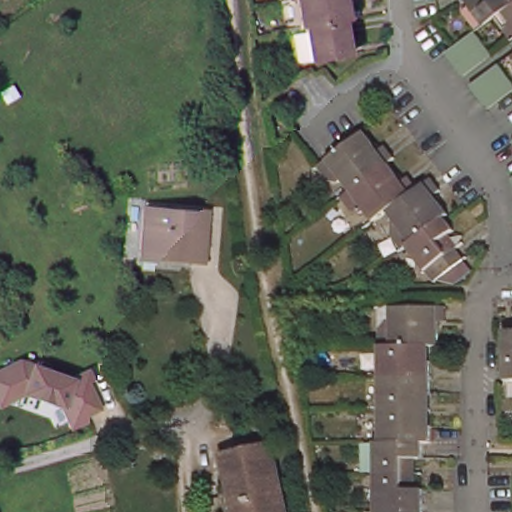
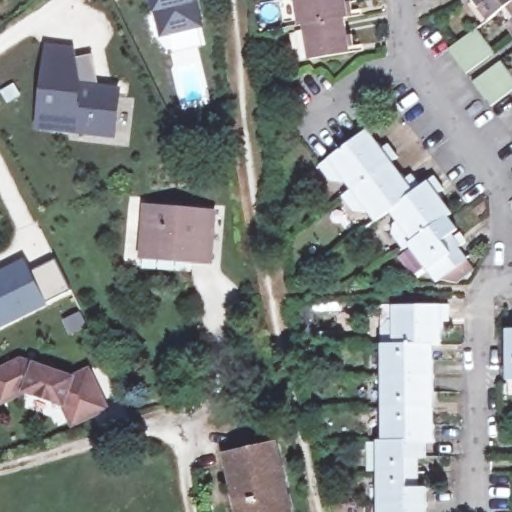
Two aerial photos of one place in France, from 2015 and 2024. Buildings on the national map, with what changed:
new [(161,34),(153,0),(193,0),(199,24),(161,34)]
unchanged [(297,0),(349,0),(351,18),(350,18),(348,18),(354,53),(299,63),(295,34),(309,31),(308,25),(304,26),(302,19),(289,21),(286,2),(297,0)]
unchanged [(492,25),(473,0),(512,0),(512,10),(492,25)]
unchanged [(475,29),(492,54),(465,75),(447,50),(475,29)]
new [(72,59),(90,56),(95,88),(117,90),(112,134),(92,133),(92,128),(38,123),(47,46),(70,49),(72,59)]
unchanged [(495,113),(476,88),(504,67),(512,78),(512,100),(495,113)]
unchanged [(368,133),(383,151),(390,146),(399,158),(393,163),(407,181),(413,177),(422,188),(436,178),(445,190),(438,195),(453,215),(450,218),(460,230),(452,237),(468,259),(439,281),(412,245),(406,249),(395,235),(397,224),(400,222),(392,211),(378,220),(371,211),(367,214),(357,212),(346,197),(355,190),(347,180),(343,184),(333,180),(322,166),(368,133)]
unchanged [(219,270),(135,262),(142,204),(225,210),(219,270)]
new [(32,274),(55,263),(69,292),(45,304),(47,306),(0,329),(0,273),(25,260),(32,274)]
unchanged [(433,429),(433,446),(425,446),(425,459),(417,459),(417,494),(425,494),(425,512),(378,512),(377,446),(383,446),(382,332),(392,323),(395,323),(395,310),(448,309),(449,327),(440,327),(440,349),(432,349),(432,364),(433,399),(433,429)]
unchanged [(510,382),(510,332),(512,332),(512,381),(510,382)]
unchanged [(45,363),(47,356),(57,359),(55,367),(75,374),(85,369),(90,366),(94,374),(109,403),(77,419),(67,399),(30,385),(5,397),(0,386),(0,368),(25,355),(45,363)]
unchanged [(274,444),(289,512),(240,512),(227,456),(274,444)]

